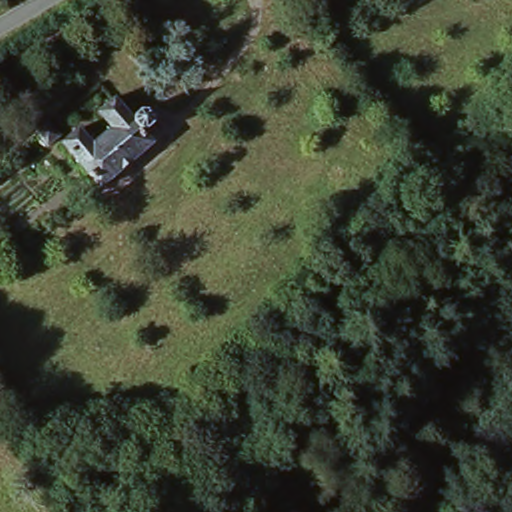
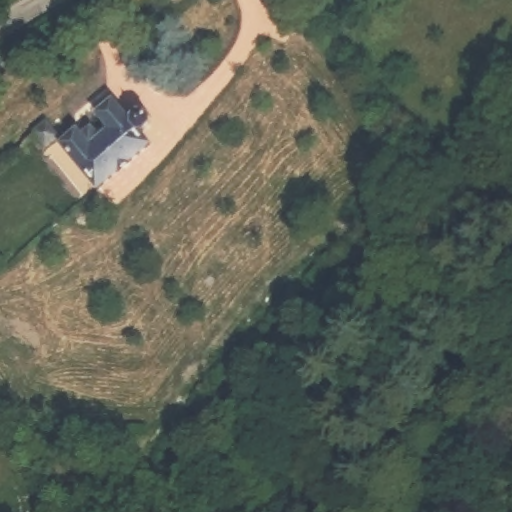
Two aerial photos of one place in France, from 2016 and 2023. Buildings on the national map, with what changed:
unchanged [(151,126),(141,136),(149,146),(93,192),(56,145),(71,132),(80,142),(86,137),(94,142),(105,131),(93,115),(111,102),(130,124),(143,115),(151,126)]
unchanged [(52,137),(40,147),(30,135),(42,125),(52,137)]

